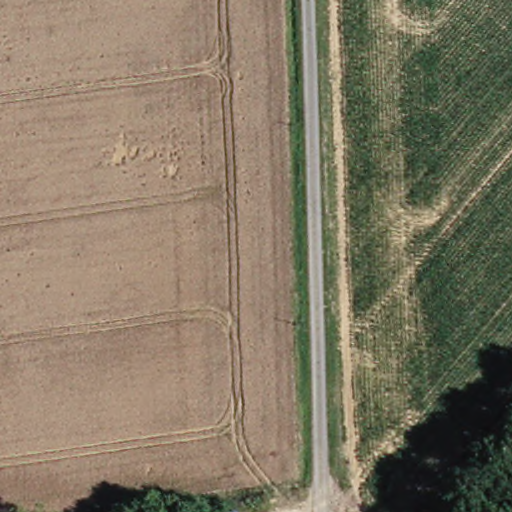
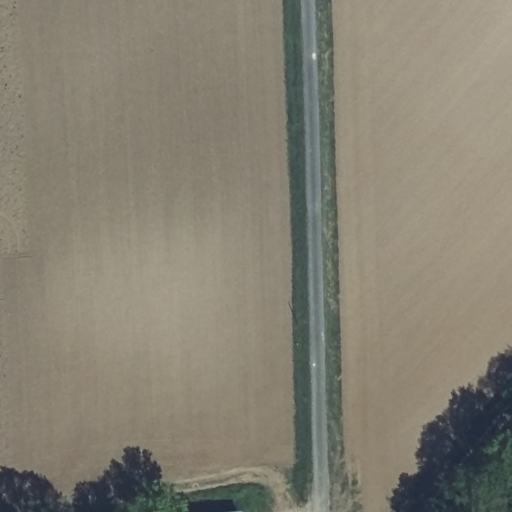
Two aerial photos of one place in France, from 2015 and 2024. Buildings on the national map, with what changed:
unchanged [(246,511),(246,512),(231,512),(246,511)]

